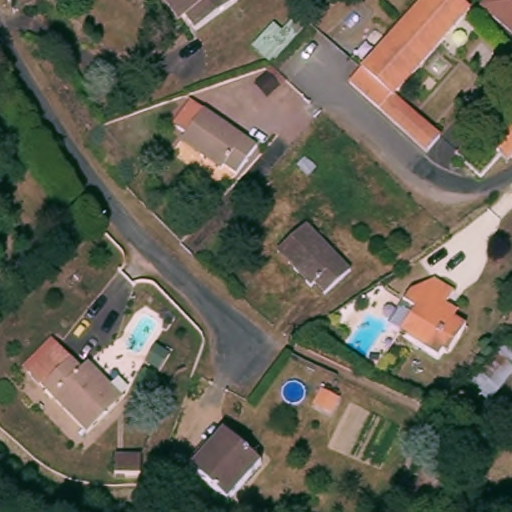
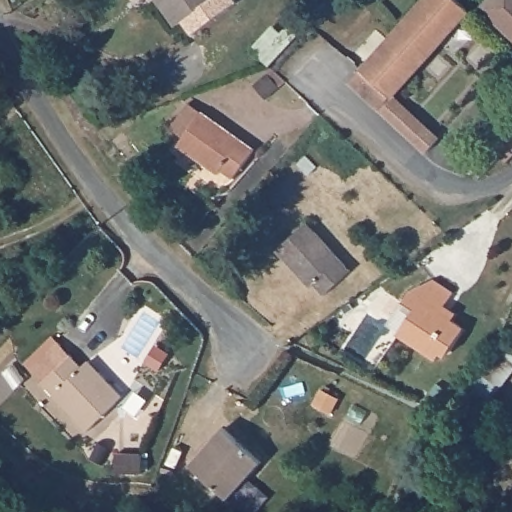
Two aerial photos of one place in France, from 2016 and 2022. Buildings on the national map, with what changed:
unchanged [(167,0),(247,0),(247,1),(203,31),(194,19),(185,25),(167,0)]
unchanged [(332,3),(275,66),(258,46),(277,24),(286,31),(313,0),(330,0),(332,3)]
unchanged [(478,17),(399,93),(383,109),(351,83),(437,0),(463,0),(478,17)]
unchanged [(486,4),(489,0),(512,0),(512,27),(486,4)]
unchanged [(383,109),(399,93),(444,131),(427,151),(380,112),(383,109)]
unchanged [(250,179),(234,169),(230,175),(209,161),(213,155),(194,142),(178,131),(196,104),(213,116),(266,154),(250,179)]
unchanged [(500,137),(512,121),(512,161),(503,155),(492,147),(500,137)]
unchanged [(305,221),(356,267),(336,292),(321,279),(316,286),(297,270),(303,261),(285,245),(305,221)]
unchanged [(411,301),(418,289),(442,278),(459,291),(446,313),(471,332),(457,355),(450,353),(443,361),(402,331),(418,306),(411,301)]
unchanged [(501,399),(477,386),(482,376),(501,333),(512,339),(512,384),(509,391),(505,389),(501,399)]
unchanged [(45,382),(31,367),(60,340),(73,355),(74,354),(81,364),(89,356),(106,375),(126,395),(119,402),(91,431),(45,382)]
unchanged [(338,410),(322,402),(328,388),(344,396),(338,410)]
unchanged [(263,462),(235,499),(196,467),(225,430),(263,462)]
unchanged [(150,453),(151,475),(124,473),(123,452),(150,453)]

